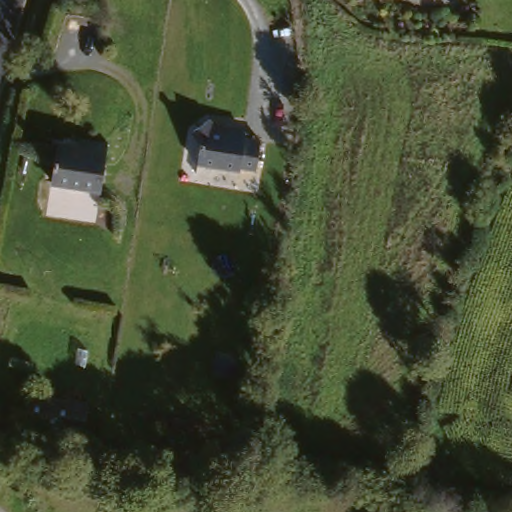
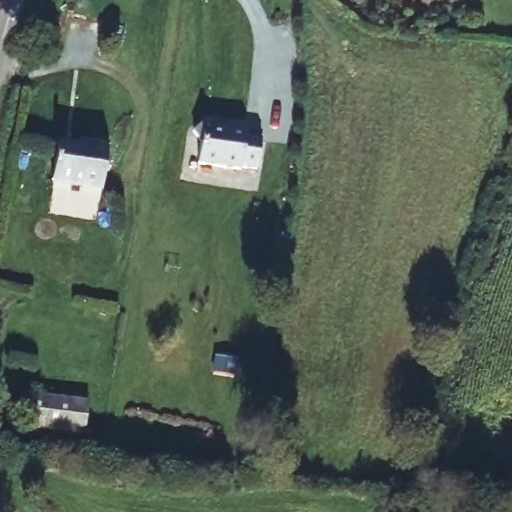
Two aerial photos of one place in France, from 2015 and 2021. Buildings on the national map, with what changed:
unchanged [(205,142),(196,132),(209,119),(219,128),(230,129),(230,126),(248,126),(248,132),(264,133),(263,163),(247,163),(247,165),(204,164),(205,142)]
unchanged [(70,155),(70,148),(98,150),(96,193),(46,190),(48,154),(70,155)]
unchanged [(244,366),(225,362),(228,349),(248,352),(244,366)]
unchanged [(84,403),(83,431),(24,427),(26,398),(84,403)]

